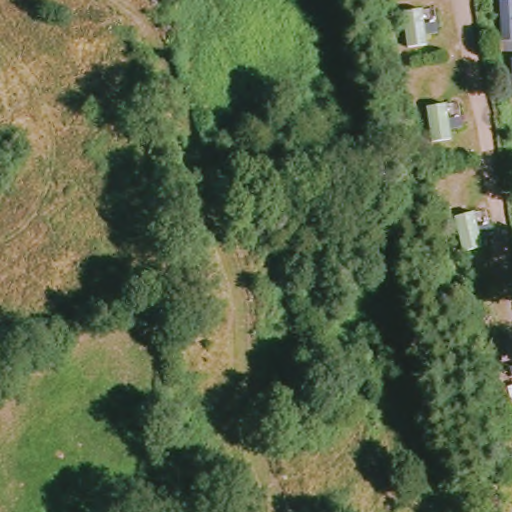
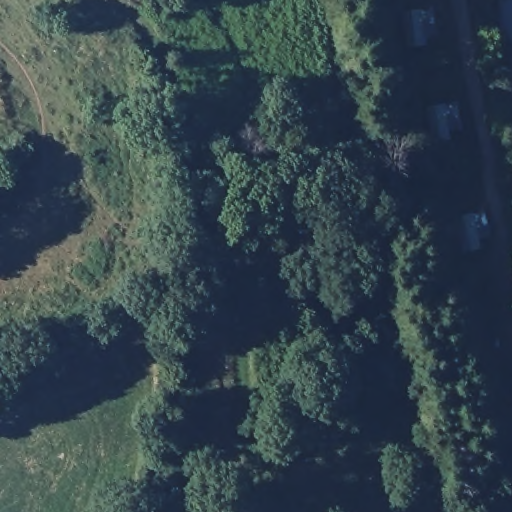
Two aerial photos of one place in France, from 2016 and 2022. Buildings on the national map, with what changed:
unchanged [(408,55),(404,14),(433,15),(433,55),(408,55)]
unchanged [(436,148),(427,108),(452,107),(460,147),(436,148)]
unchanged [(464,262),(457,220),(482,220),(488,256),(464,262)]

